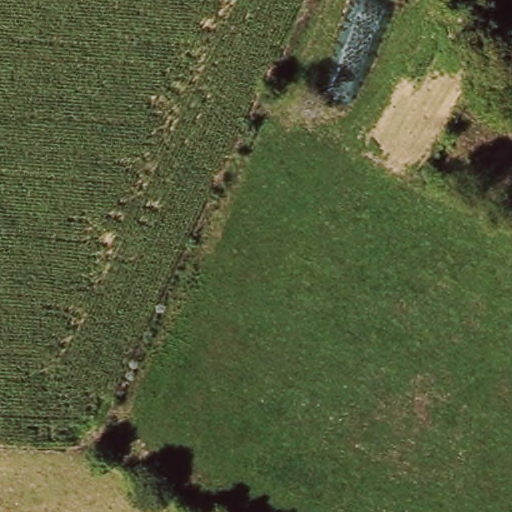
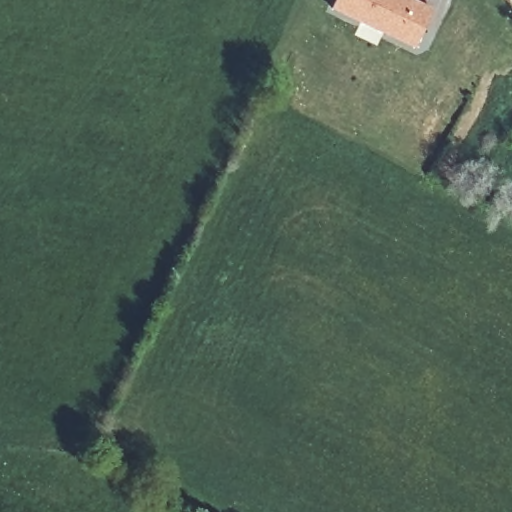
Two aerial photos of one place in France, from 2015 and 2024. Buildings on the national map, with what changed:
new [(413,49),(329,9),(334,0),(413,0),(432,9),(413,49)]

